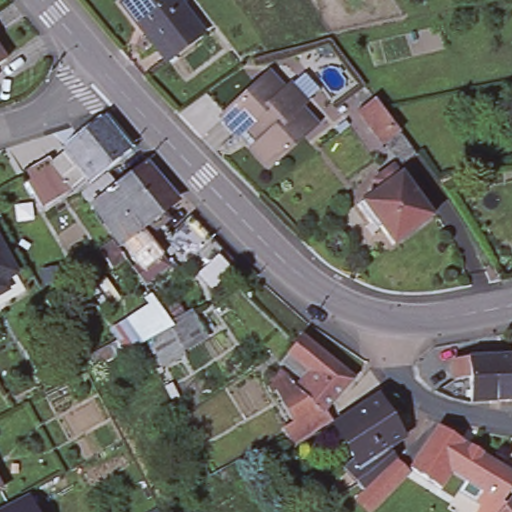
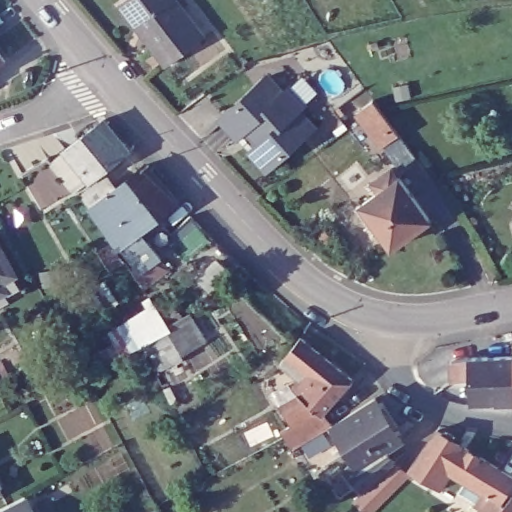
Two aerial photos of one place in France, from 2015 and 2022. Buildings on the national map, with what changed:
unchanged [(128,0),(175,0),(202,33),(167,61),(139,26),(138,26),(121,5),(128,0)]
unchanged [(0,60),(0,43),(7,54),(0,60)]
unchanged [(285,93),(290,88),(305,104),(300,110),(315,126),(270,169),(224,119),(269,76),(285,93)]
unchanged [(362,114),(368,121),(405,171),(390,183),(372,160),(370,161),(345,128),(362,114)]
unchanged [(20,173),(47,156),(51,160),(64,149),(100,118),(125,148),(90,178),(75,189),(74,188),(41,207),(20,173)]
unchanged [(144,288),(137,279),(144,273),(131,260),(133,259),(121,245),(127,240),(111,222),(105,227),(94,213),(100,208),(102,206),(100,204),(144,165),(174,198),(139,229),(163,256),(162,257),(169,266),(144,288)]
unchanged [(367,204),(360,195),(378,181),(385,190),(387,189),(419,232),(380,261),(362,237),(357,240),(344,221),(367,204)]
unchanged [(210,237),(188,258),(185,262),(163,239),(188,214),(210,237)]
unchanged [(210,237),(237,265),(215,286),(188,258),(210,237)]
unchanged [(114,245),(126,262),(112,272),(100,255),(114,245)]
unchanged [(0,247),(15,276),(20,285),(24,293),(0,306),(0,247)]
unchanged [(149,300),(157,313),(132,327),(125,314),(149,300)]
unchanged [(200,329),(157,352),(150,335),(192,313),(200,329)]
unchanged [(305,334),(356,377),(324,413),(322,411),(300,385),(305,379),(284,361),(305,334)]
unchanged [(509,346),(512,346),(512,363),(509,346)]
unchanged [(449,368),(467,365),(512,363),(512,409),(468,411),(467,385),(450,386),(449,368)]
unchanged [(295,426),(278,388),(274,390),(270,384),(275,382),(272,375),(285,369),(300,385),(322,411),(295,426)]
unchanged [(335,422),(378,394),(405,437),(390,447),(396,458),(369,483),(365,478),(360,482),(350,470),(362,463),(335,422)]
unchanged [(443,429),(447,427),(457,432),(456,437),(467,444),(452,469),(442,486),(412,467),(437,426),(443,429)]
unchanged [(370,509),(357,494),(369,483),(396,458),(408,471),(370,509)]
unchanged [(349,490),(331,502),(324,492),(342,480),(349,490)]
unchanged [(35,512),(0,512),(0,511),(27,497),(35,512)]

